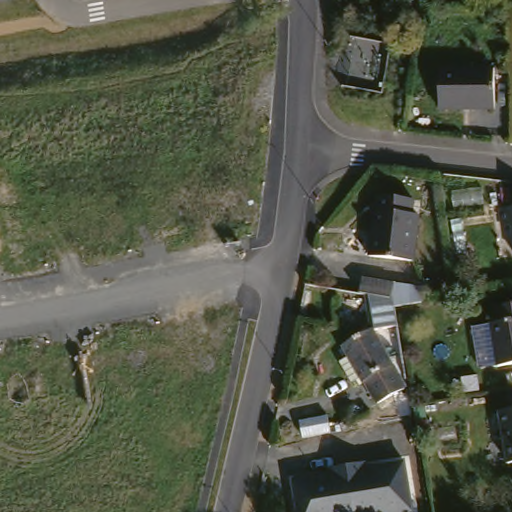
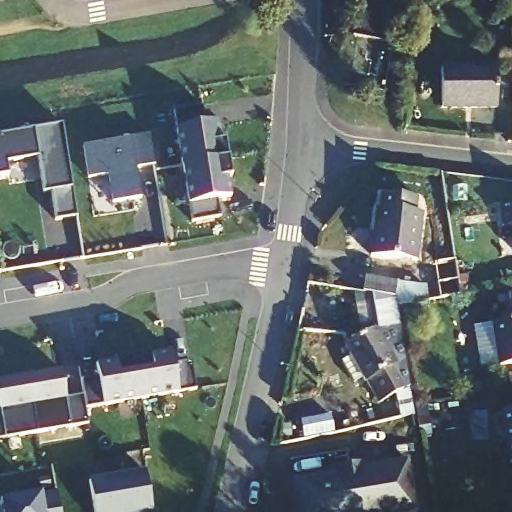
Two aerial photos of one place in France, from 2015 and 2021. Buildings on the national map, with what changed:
unchanged [(506,61),(505,107),(449,107),(451,60),(506,61)]
new [(202,106),(207,123),(218,121),(221,141),(225,140),(231,180),(226,180),(229,197),(217,199),(220,216),(191,221),(188,204),(181,164),(174,129),(172,112),(202,106)]
new [(50,192),(43,194),(36,158),(4,163),(6,176),(0,178),(0,137),(61,127),(70,190),(74,217),(55,220),(50,192)]
new [(155,166),(136,169),(141,199),(112,204),(106,175),(87,179),(81,148),(128,139),(148,135),(155,166)]
unchanged [(377,250),(384,195),(428,197),(427,209),(431,210),(426,259),(377,250)]
unchanged [(512,203),(512,206),(511,203),(512,203)]
unchanged [(349,336),(375,321),(375,278),(433,282),(433,304),(406,304),(409,321),(390,329),(420,379),(385,396),(349,336)]
unchanged [(512,361),(507,362),(501,318),(507,317),(504,302),(512,301),(512,361)]
new [(196,388),(177,391),(102,405),(85,407),(83,396),(80,378),(97,375),(96,362),(113,359),(113,357),(150,350),(151,354),(170,350),(173,364),(190,361),(196,388)]
new [(85,407),(87,422),(0,439),(0,379),(61,369),(65,398),(83,396),(85,407)]
unchanged [(512,464),(511,464),(504,407),(512,406),(512,464)]
unchanged [(292,480),(407,459),(416,512),(297,512),(292,480)]
new [(59,512),(0,512),(0,509),(0,500),(40,493),(54,491),(59,512)]

